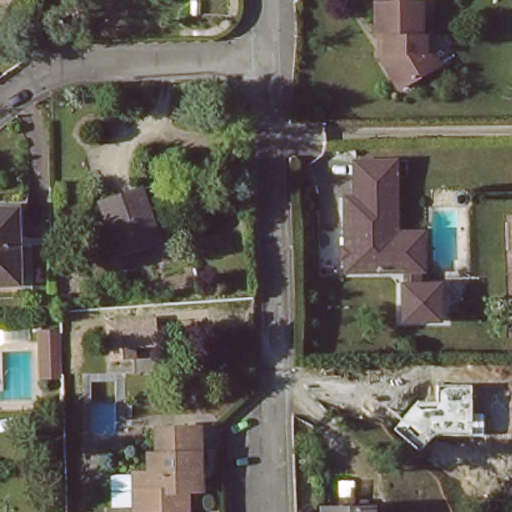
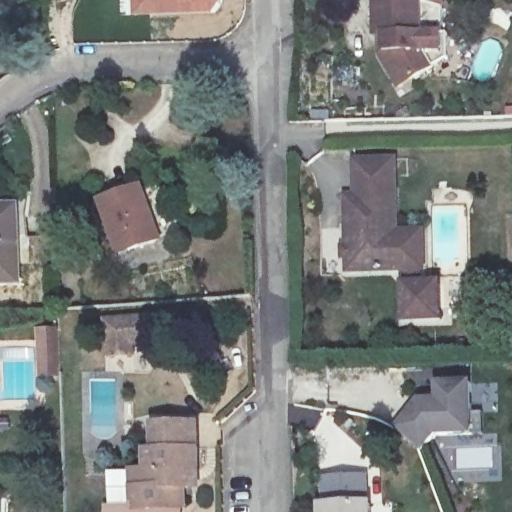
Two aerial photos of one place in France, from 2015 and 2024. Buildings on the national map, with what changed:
new [(217,15),(132,18),(131,0),(219,0),(217,15)]
unchanged [(422,2),(422,32),(431,36),(433,52),(427,59),(433,68),(417,79),(412,74),(400,82),(385,55),(388,54),(388,37),(377,37),(378,3),(422,2)]
unchanged [(404,163),(404,233),(428,233),(428,285),(444,285),(444,319),(407,319),(407,286),(415,286),(415,272),(352,272),(352,163),(404,163)]
unchanged [(142,189),(158,241),(121,254),(103,201),(142,189)]
unchanged [(0,281),(0,206),(13,206),(12,281),(0,281)]
unchanged [(157,346),(133,348),(134,357),(108,359),(104,320),(154,314),(157,346)]
unchanged [(57,329),(57,331),(58,374),(40,375),(39,330),(57,329)]
unchanged [(416,402),(437,403),(436,387),(470,386),(469,415),(482,416),(482,434),(432,435),(418,452),(394,430),(416,402)]
unchanged [(146,469),(147,445),(156,444),(155,431),(155,421),(178,421),(199,421),(199,471),(190,470),(190,493),(188,506),(186,512),(110,512),(110,474),(130,473),(130,469),(146,469)]
unchanged [(371,512),(321,512),(321,505),(372,506),(371,512)]

